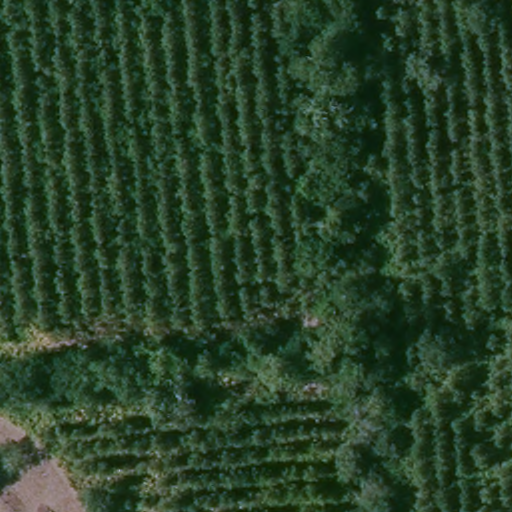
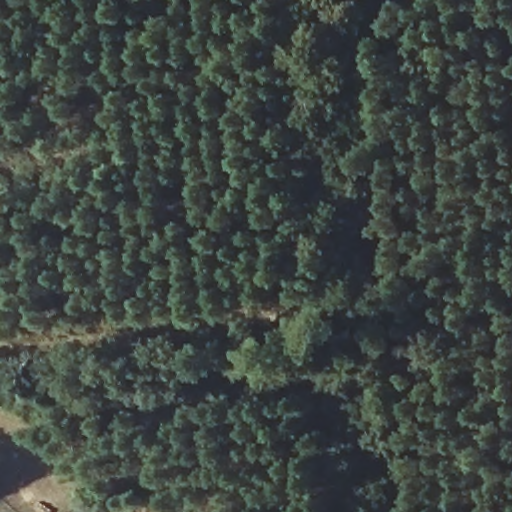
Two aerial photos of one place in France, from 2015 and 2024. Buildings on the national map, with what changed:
[]

